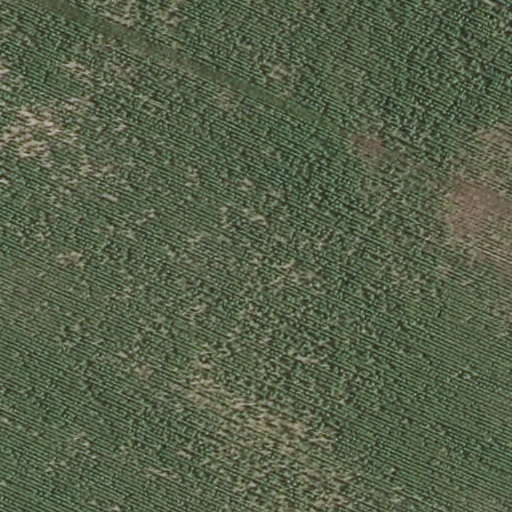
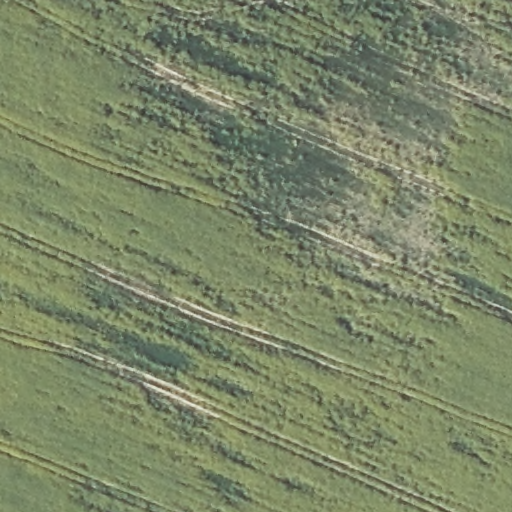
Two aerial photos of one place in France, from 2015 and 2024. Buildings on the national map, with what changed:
[]

